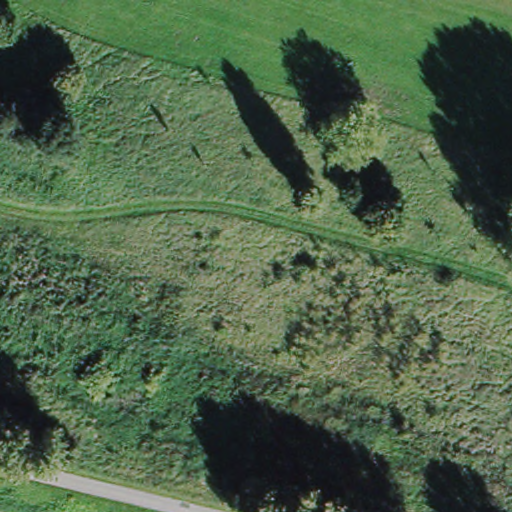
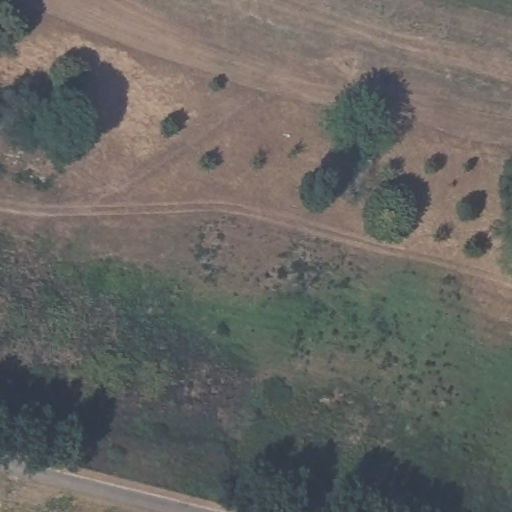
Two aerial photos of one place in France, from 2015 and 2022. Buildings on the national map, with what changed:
[]

